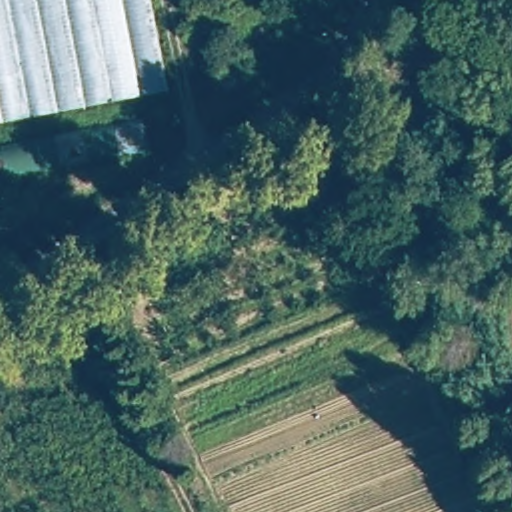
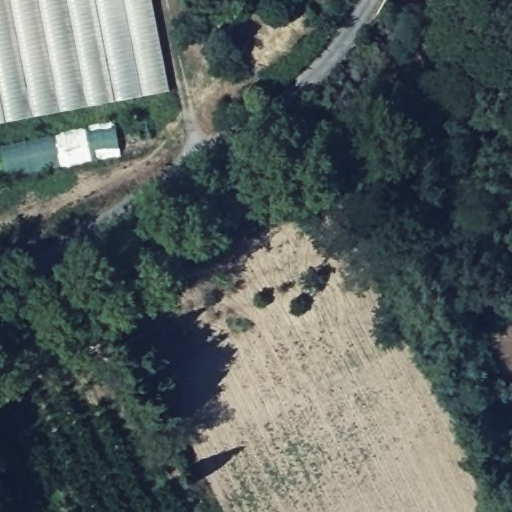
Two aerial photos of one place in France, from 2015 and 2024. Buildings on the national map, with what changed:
unchanged [(168,93),(143,96),(156,160),(0,184),(0,0),(152,0),(168,93)]

